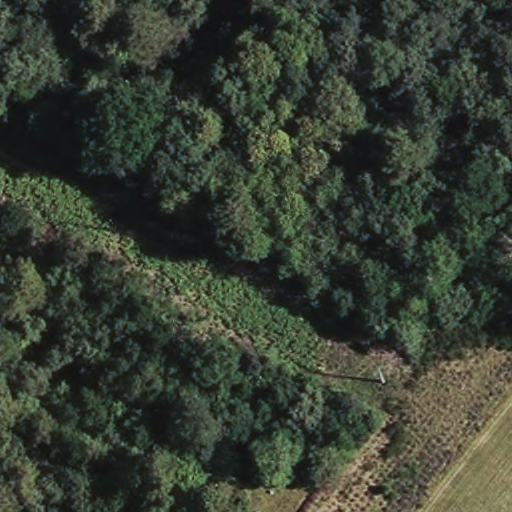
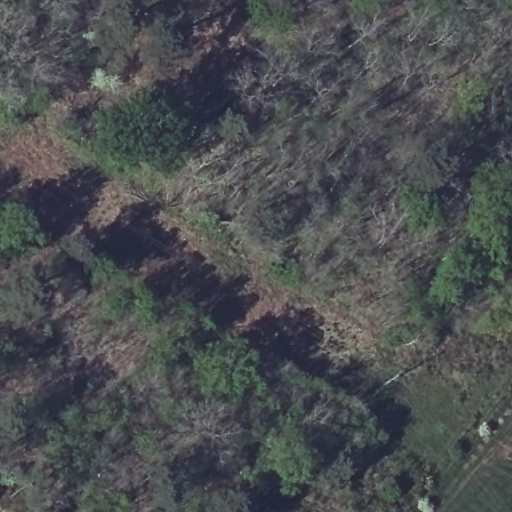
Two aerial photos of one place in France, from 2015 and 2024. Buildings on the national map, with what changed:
[]

